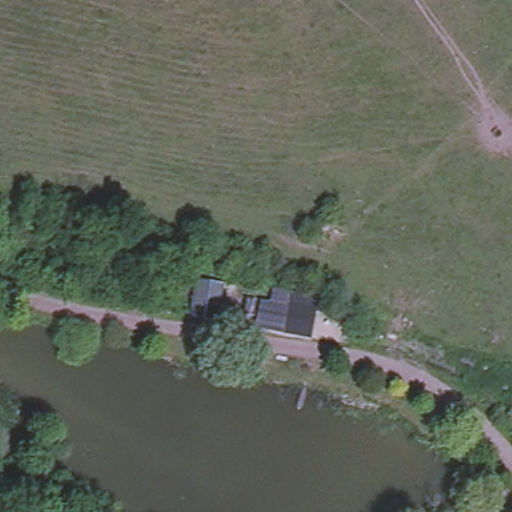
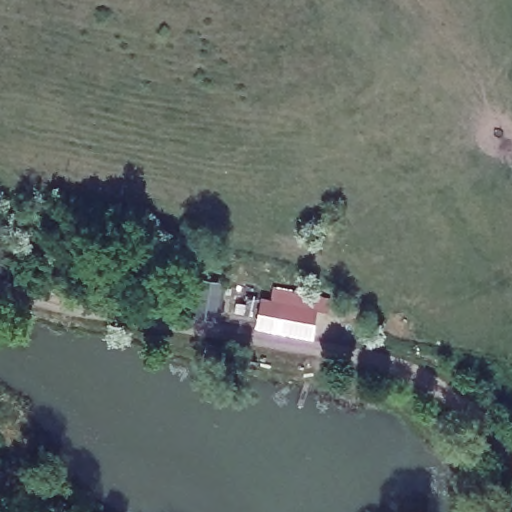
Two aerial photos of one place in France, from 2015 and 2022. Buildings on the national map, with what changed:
unchanged [(220,319),(191,315),(196,278),(225,282),(220,319)]
unchanged [(292,292),(290,302),(307,306),(302,333),(255,326),(257,316),(244,313),(247,295),(271,297),(273,290),(292,292)]

